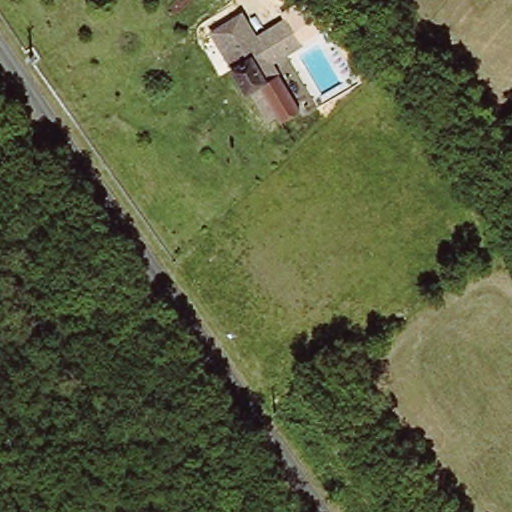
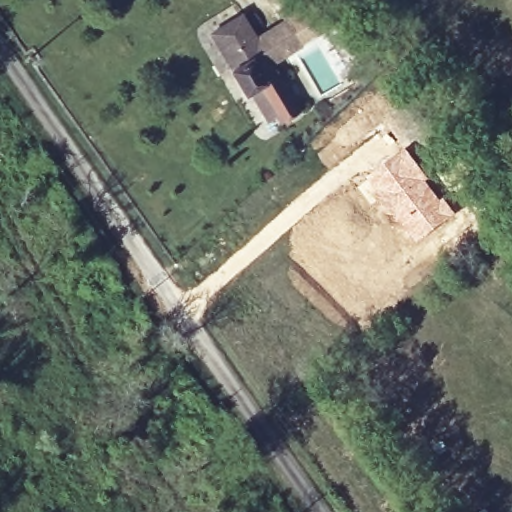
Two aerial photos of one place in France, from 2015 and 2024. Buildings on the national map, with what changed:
unchanged [(285,89),(281,92),(300,114),(286,126),(282,120),(277,124),(252,93),(249,95),(234,76),(242,69),(216,35),(232,21),(251,44),(269,68),(285,89)]
unchanged [(299,44),(269,68),(251,44),(282,22),(299,44)]
new [(405,148),(434,190),(457,216),(417,246),(389,211),(367,180),(405,148)]

